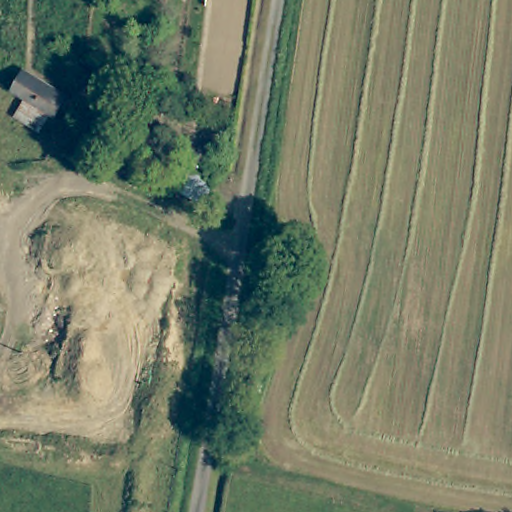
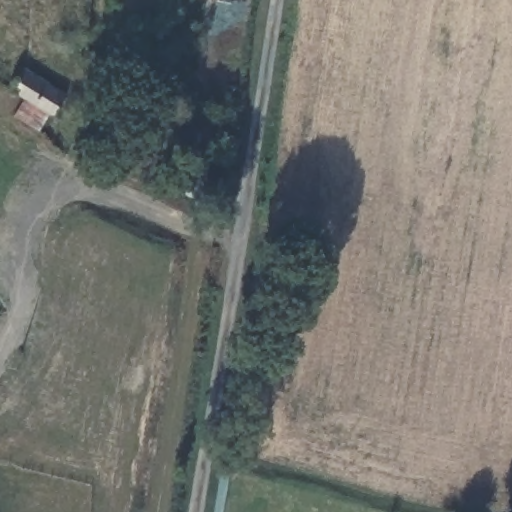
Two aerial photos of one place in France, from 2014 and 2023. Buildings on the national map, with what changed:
unchanged [(22,67),(64,92),(50,114),(7,90),(22,67)]
unchanged [(149,150),(185,171),(189,165),(227,188),(218,205),(142,161),(149,150)]

